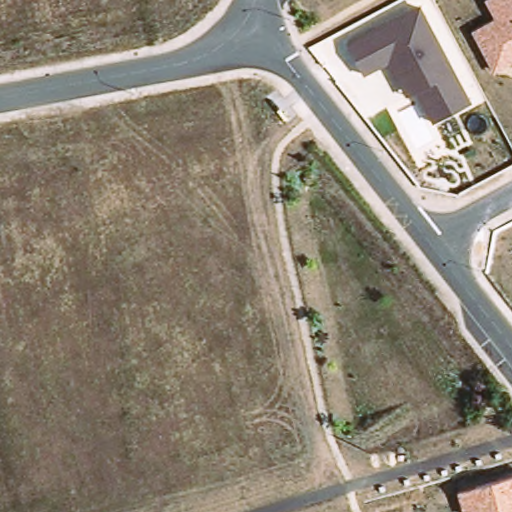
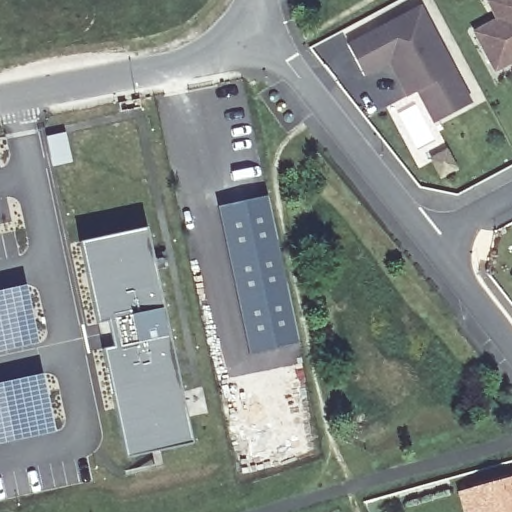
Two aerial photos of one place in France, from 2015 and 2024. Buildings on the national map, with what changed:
unchanged [(471,31),(494,19),(484,0),(512,0),(512,63),(494,73),(471,31)]
unchanged [(473,102),(433,123),(418,91),(406,97),(390,64),(364,77),(346,44),(421,4),(473,102)]
new [(299,343),(249,354),(219,206),(268,196),(299,343)]
new [(196,443),(129,457),(105,348),(100,323),(83,242),(150,227),(196,443)]
new [(27,283),(40,346),(0,354),(0,288),(27,283)]
new [(44,372),(57,432),(0,444),(0,381),(44,372)]
unchanged [(512,474),(512,512),(462,512),(457,492),(512,474)]

